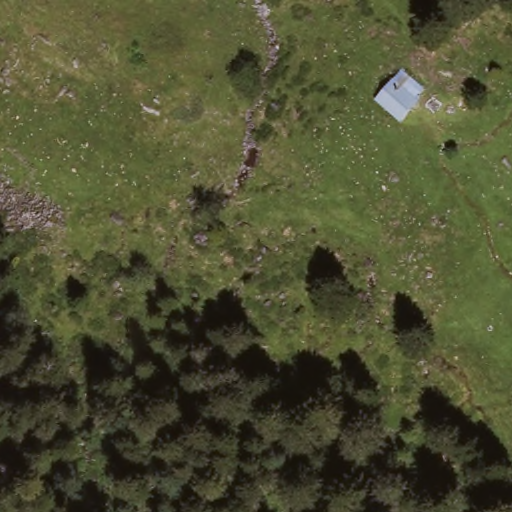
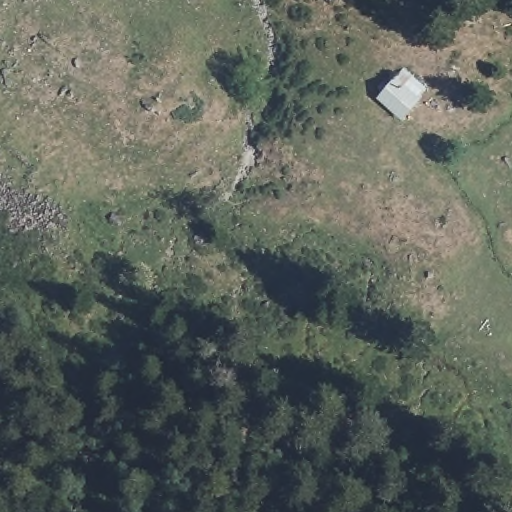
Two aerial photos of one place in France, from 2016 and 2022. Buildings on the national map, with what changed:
unchanged [(426,98),(400,126),(377,106),(406,77),(426,98)]

